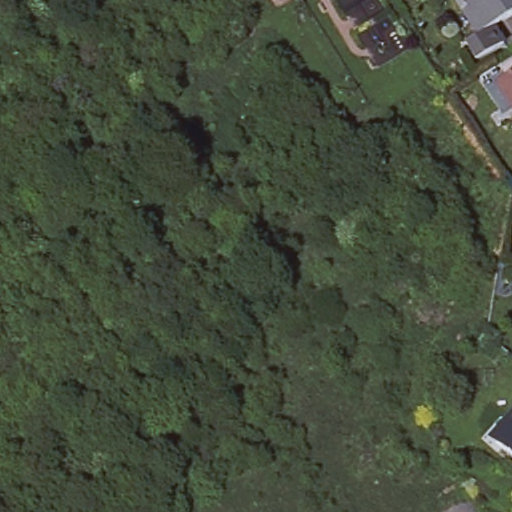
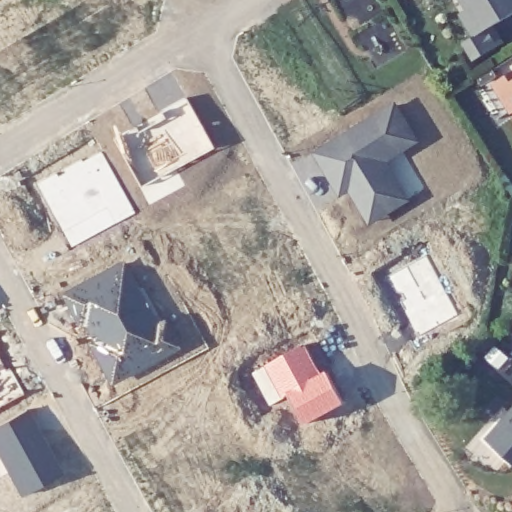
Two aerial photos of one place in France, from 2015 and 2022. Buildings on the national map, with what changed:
unchanged [(462,12),(471,6),(467,0),(512,0),(512,11),(492,23),(502,40),(473,57),(463,40),(474,34),(462,12)]
unchanged [(512,73),(512,108),(497,83),(512,73)]
new [(216,151),(139,189),(115,139),(188,100),(216,151)]
new [(418,144),(391,163),(412,202),(369,226),(349,193),(341,198),(311,155),(395,105),(418,144)]
new [(136,214),(70,250),(38,185),(102,152),(136,214)]
new [(458,315),(413,337),(384,276),(428,255),(458,315)]
new [(174,348),(111,385),(61,295),(123,260),(174,348)]
new [(319,374),(324,371),(345,406),(301,427),(286,398),(270,406),(253,374),(304,345),(319,374)]
new [(26,395),(0,410),(0,351),(26,395)]
new [(64,479),(26,500),(0,453),(0,428),(26,412),(64,479)]
unchanged [(491,438),(505,422),(512,414),(512,457),(497,443),(491,438)]

